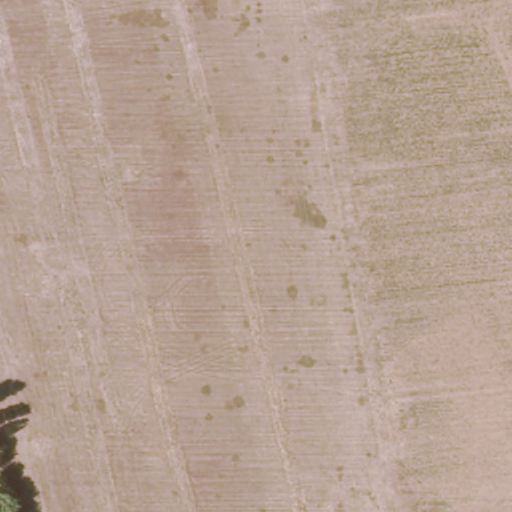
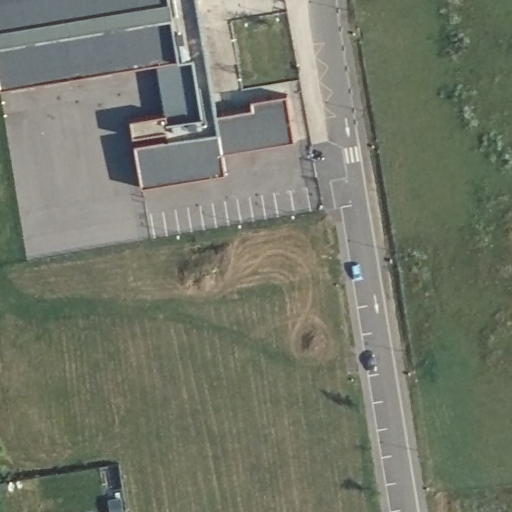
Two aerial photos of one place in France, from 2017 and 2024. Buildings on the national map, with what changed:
new [(251,110),(251,100),(286,94),(294,141),(222,152),(225,175),(141,187),(135,146),(167,141),(165,131),(132,136),(131,120),(165,114),(167,122),(201,117),(191,58),(157,64),(0,89),(0,0),(196,0),(216,115),(251,110)]

